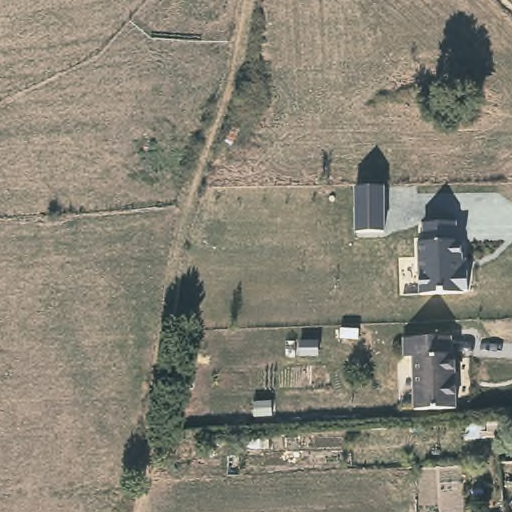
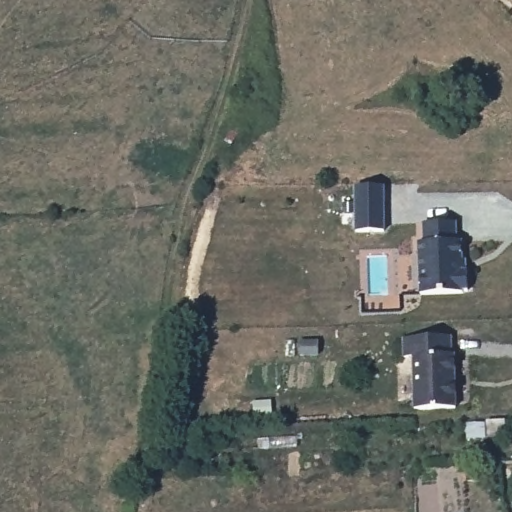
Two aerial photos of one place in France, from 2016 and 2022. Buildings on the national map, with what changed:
unchanged [(385,186),(388,232),(360,232),(356,186),(385,186)]
unchanged [(420,267),(420,244),(426,243),(426,224),(458,224),(458,243),(463,243),(463,245),(463,267),(463,273),(468,272),(469,293),(421,294),(420,267)]
unchanged [(450,354),(455,354),(456,408),(415,410),(413,358),(405,358),(405,338),(450,336),(450,354)]
unchanged [(495,433),(478,434),(477,416),(495,416),(495,433)]

